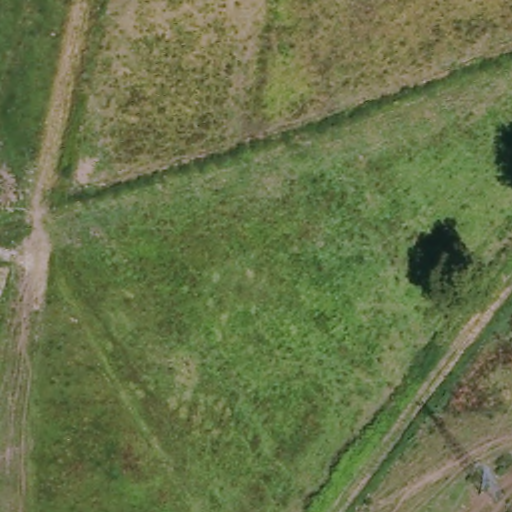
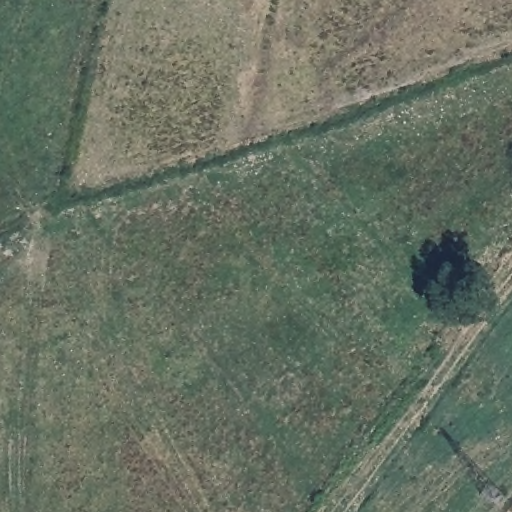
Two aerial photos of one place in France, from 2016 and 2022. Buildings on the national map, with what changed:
[]

